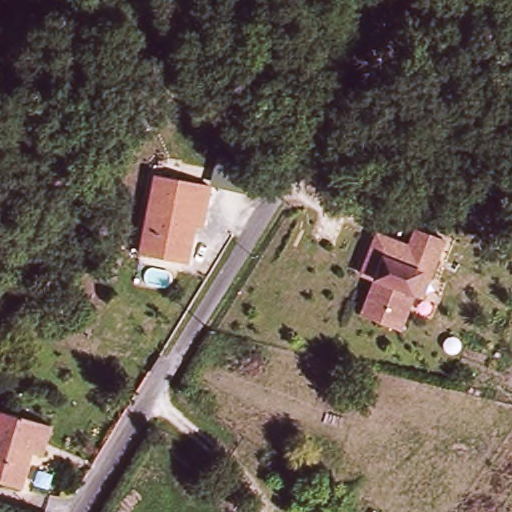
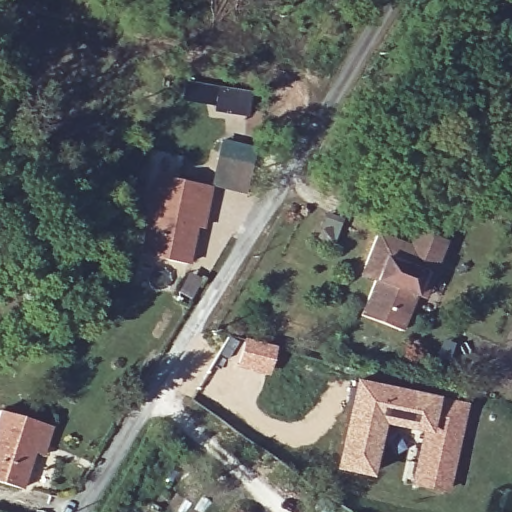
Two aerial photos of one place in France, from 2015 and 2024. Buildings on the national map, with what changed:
unchanged [(140,252),(153,189),(155,173),(170,175),(210,183),(207,201),(202,224),(194,223),(188,260),(140,252)]
unchanged [(417,292),(403,327),(365,312),(378,276),(365,271),(381,231),(413,244),(419,227),(448,238),(424,295),(417,292)]
new [(355,379),(437,397),(467,403),(449,491),(413,484),(423,431),(383,423),(372,477),(335,469),(355,379)]
unchanged [(0,487),(0,414),(1,412),(42,424),(20,494),(0,487)]

